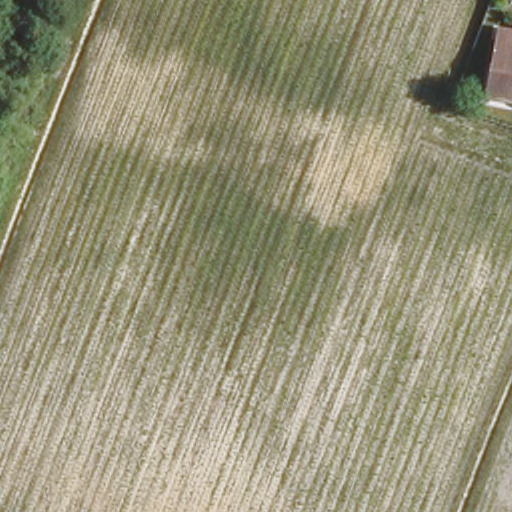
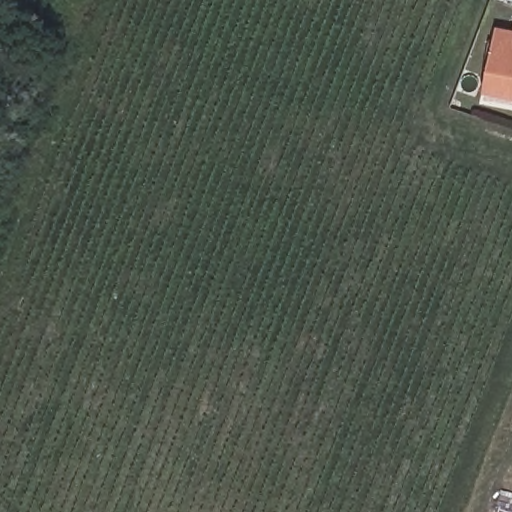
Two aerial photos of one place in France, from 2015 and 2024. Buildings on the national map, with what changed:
unchanged [(481,81),(494,21),(512,24),(512,87),(508,86),(481,81)]
unchanged [(141,70),(114,59),(119,47),(146,57),(141,70)]

